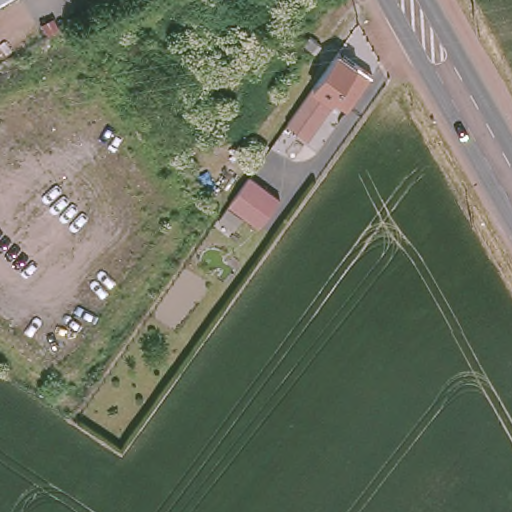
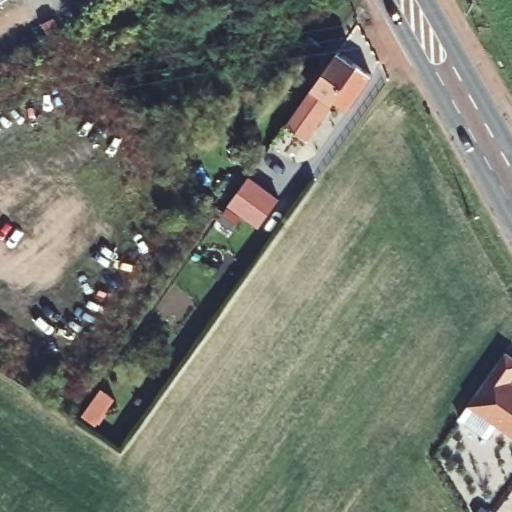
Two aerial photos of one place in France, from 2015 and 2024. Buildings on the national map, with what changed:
unchanged [(368,71),(341,105),(328,95),(300,131),(283,120),(284,118),(335,45),(368,71)]
unchanged [(220,209),(241,178),(272,199),(250,230),(220,209)]
new [(512,358),(512,371),(507,379),(512,383),(512,436),(467,407),(502,351),(512,358)]

